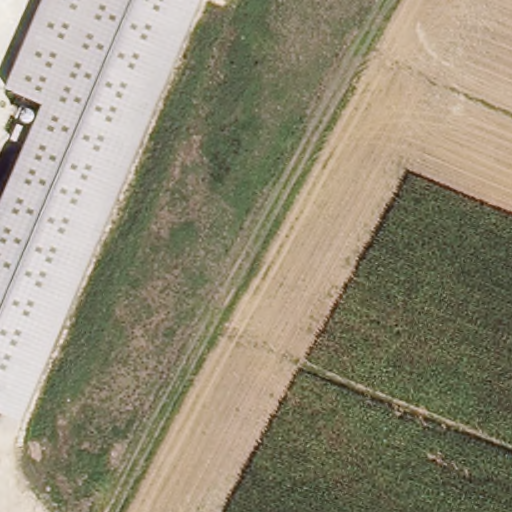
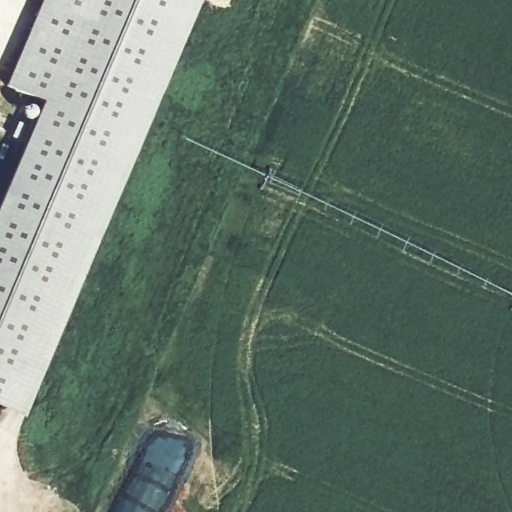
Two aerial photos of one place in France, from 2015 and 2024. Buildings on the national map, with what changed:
unchanged [(44,102),(7,86),(44,0),(203,0),(24,420),(0,409),(0,206),(44,102)]

